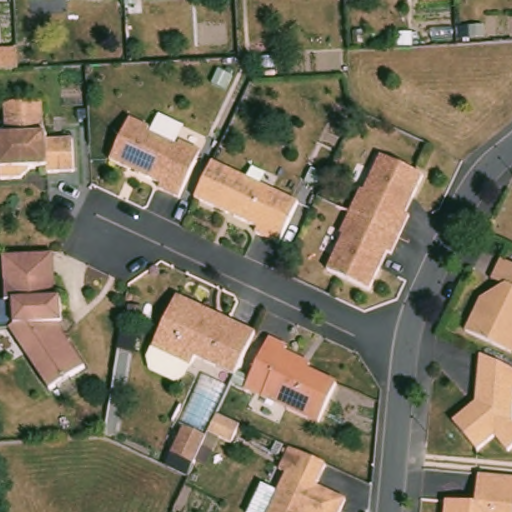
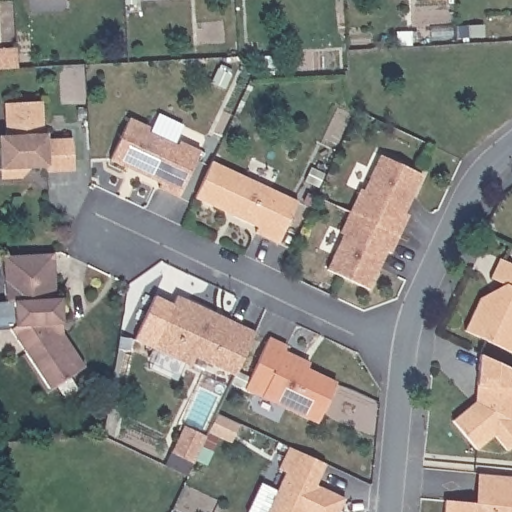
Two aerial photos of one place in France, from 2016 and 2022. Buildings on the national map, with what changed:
unchanged [(0,7),(0,0),(1,0),(1,7),(0,7)]
unchanged [(23,76),(0,78),(0,58),(21,57),(23,76)]
unchanged [(48,170),(46,166),(34,166),(23,178),(1,179),(0,161),(0,134),(9,131),(7,101),(41,99),(43,129),(50,136),(71,134),(74,168),(48,170)]
unchanged [(156,113),(179,124),(172,142),(151,133),(154,125),(151,124),(156,113)]
unchanged [(179,194),(159,186),(161,180),(113,157),(131,117),(151,126),(148,135),(179,149),(184,142),(202,148),(179,194)]
unchanged [(353,209),(364,189),(367,192),(384,156),(422,173),(406,209),(411,213),(402,230),(353,209)]
unchanged [(215,164),(301,203),(282,244),(259,234),(262,228),(200,198),(215,164)]
unchanged [(392,250),(385,247),(368,284),(330,265),(347,228),(343,227),(353,209),(402,230),(392,250)]
unchanged [(28,254),(54,253),(56,298),(61,298),(63,334),(85,367),(50,389),(11,329),(16,326),(15,302),(6,302),(4,255),(28,254)]
unchanged [(472,332),(486,299),(500,304),(510,284),(499,276),(508,259),(512,262),(512,350),(472,332)]
unchanged [(240,374),(199,356),(194,366),(156,349),(181,299),(257,335),(240,374)]
unchanged [(319,422),(249,389),(274,339),(289,346),(286,352),(313,366),(308,373),(338,386),(319,422)]
unchanged [(512,371),(512,422),(510,424),(512,426),(512,447),(505,452),(494,439),(477,449),(455,423),(475,406),(481,357),(512,371)]
unchanged [(209,412),(236,423),(227,444),(201,431),(209,412)]
unchanged [(163,457),(176,429),(198,438),(185,466),(163,457)]
unchanged [(318,482),(349,498),(342,512),(270,512),(290,472),(282,467),(292,444),(328,461),(318,482)]
unchanged [(448,502),(477,504),(479,475),(489,476),(512,478),(512,512),(447,512),(448,502)]

